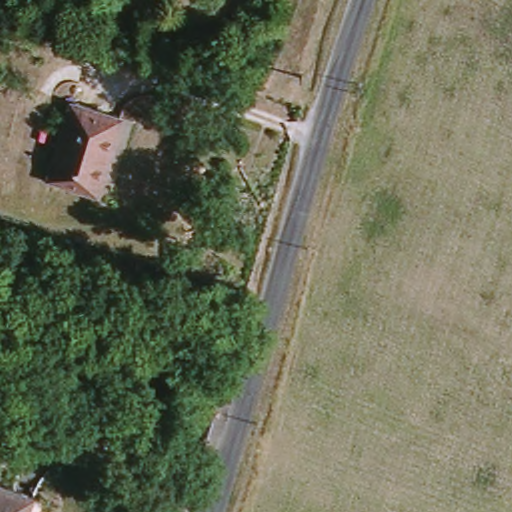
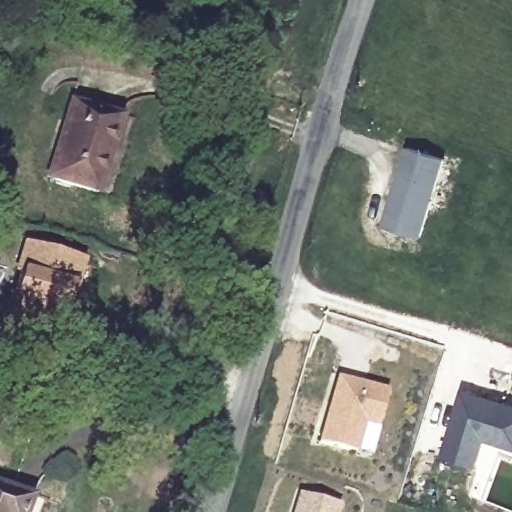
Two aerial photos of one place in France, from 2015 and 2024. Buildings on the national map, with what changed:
unchanged [(265,93),(246,86),(253,67),(272,74),(265,93)]
unchanged [(50,178),(73,104),(121,119),(98,193),(50,178)]
new [(383,226),(407,147),(447,160),(423,238),(383,226)]
new [(16,296),(23,273),(16,270),(24,243),(82,261),(74,288),(69,287),(62,310),(67,312),(60,337),(18,324),(1,319),(9,294),(16,296)]
new [(334,375),(386,390),(371,456),(316,441),(334,375)]
new [(512,405),(512,448),(486,441),(477,466),(439,454),(459,389),(512,405)]
unchanged [(34,503),(30,512),(0,512),(0,490),(34,503)]
new [(337,504),(335,512),(293,512),(298,493),(337,504)]

